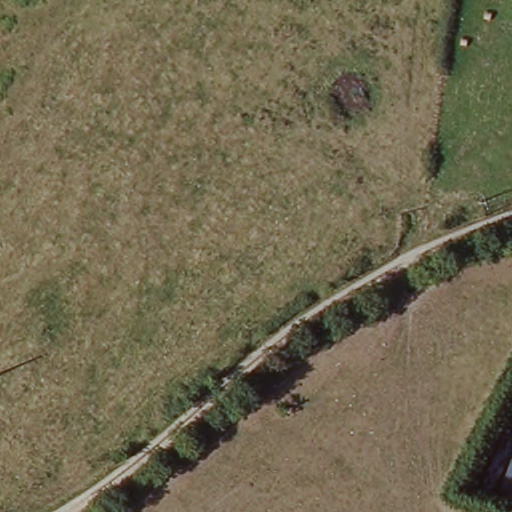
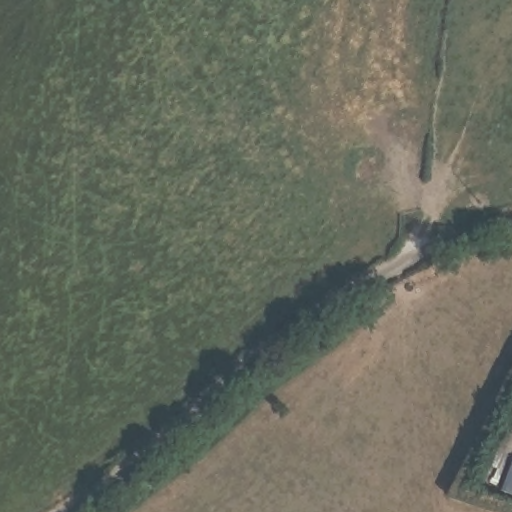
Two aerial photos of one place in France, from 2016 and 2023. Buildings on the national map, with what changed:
unchanged [(499,493),(512,460),(512,498),(499,493)]

